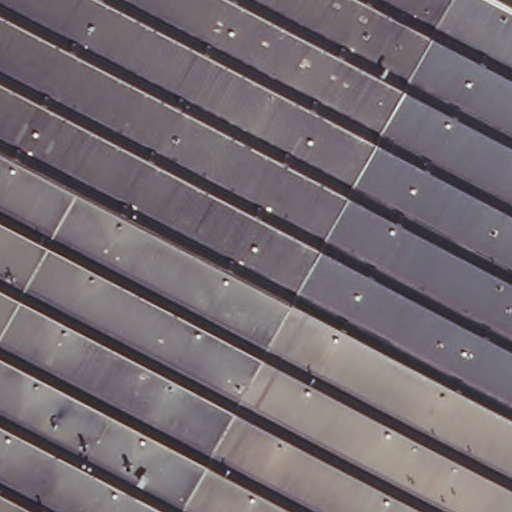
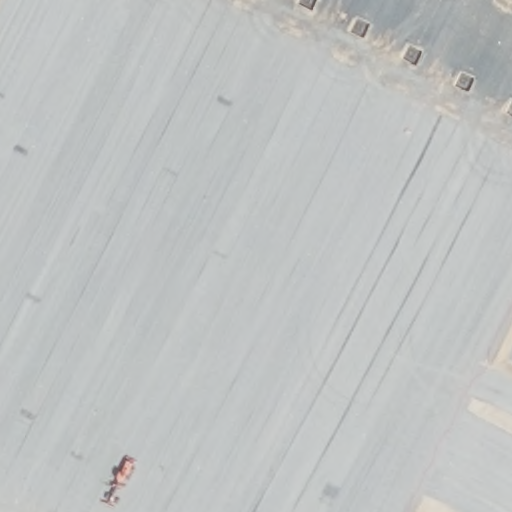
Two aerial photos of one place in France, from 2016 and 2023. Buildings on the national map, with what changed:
demolished [(512,0),(512,490),(0,224),(0,0),(512,0)]
new [(512,0),(512,324),(464,412),(512,437),(512,512),(461,512),(425,494),(416,512),(0,512),(0,0),(512,0)]
demolished [(512,490),(512,512),(0,512),(0,224),(512,490)]

